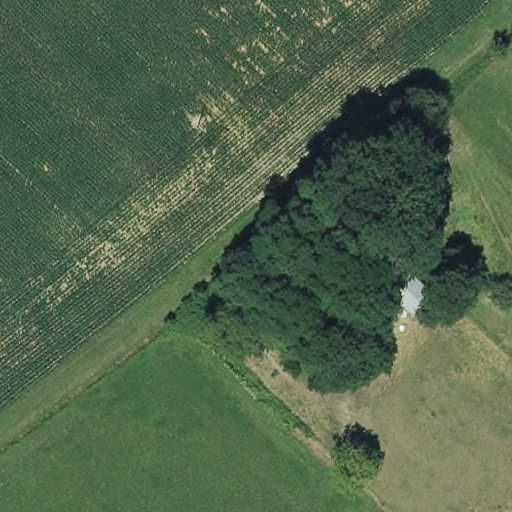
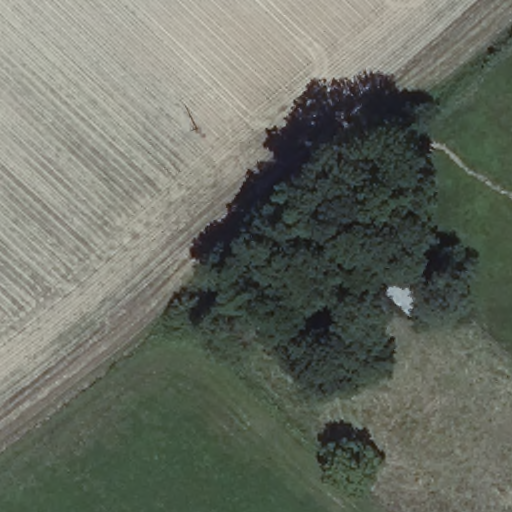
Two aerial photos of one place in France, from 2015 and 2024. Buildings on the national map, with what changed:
[]

